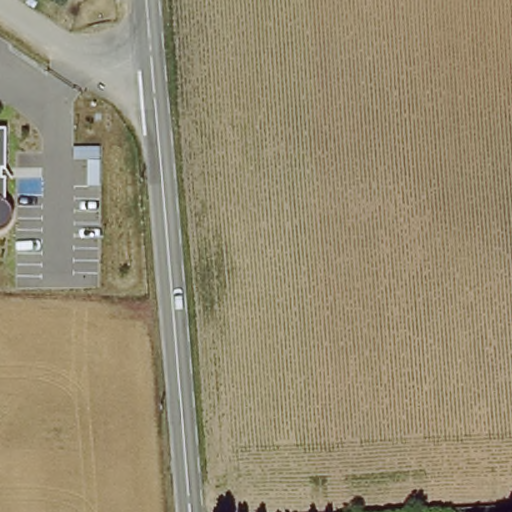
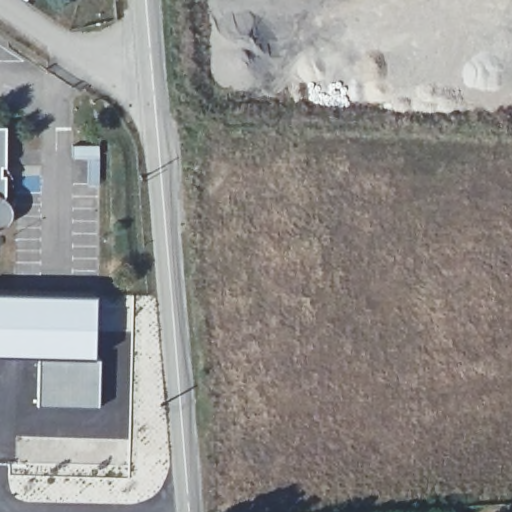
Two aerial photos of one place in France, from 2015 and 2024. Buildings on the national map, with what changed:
unchanged [(6,128),(7,167),(2,167),(2,179),(5,179),(6,198),(10,204),(13,211),(12,219),(8,226),(2,230),(0,230),(0,128),(6,128)]
new [(94,295),(93,357),(35,357),(0,356),(0,292),(94,295)]
new [(35,357),(93,357),(99,357),(98,406),(35,407),(35,357)]

